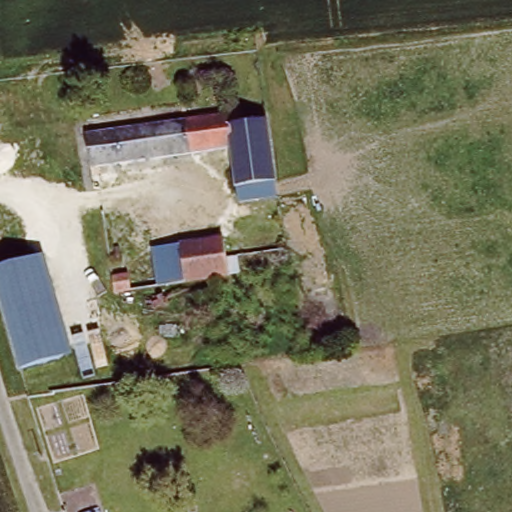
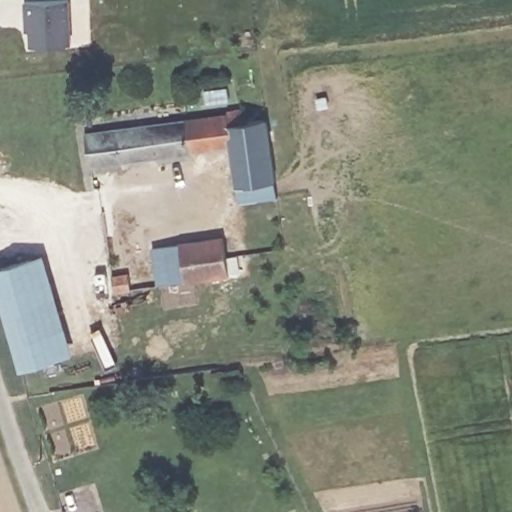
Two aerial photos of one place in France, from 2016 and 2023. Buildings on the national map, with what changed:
new [(70,45),(28,46),(28,30),(23,30),(22,1),(68,0),(70,45)]
unchanged [(237,204),(236,189),(230,149),(90,166),(84,135),(240,113),(242,126),(267,123),(276,183),(278,197),(237,204)]
unchanged [(113,294),(111,280),(128,277),(130,285),(155,280),(150,253),(222,245),(224,261),(227,260),(230,278),(113,294)]
unchanged [(0,270),(39,259),(68,357),(30,368),(0,270)]

